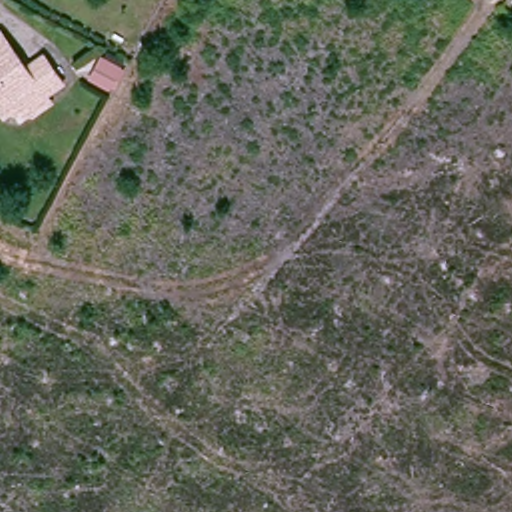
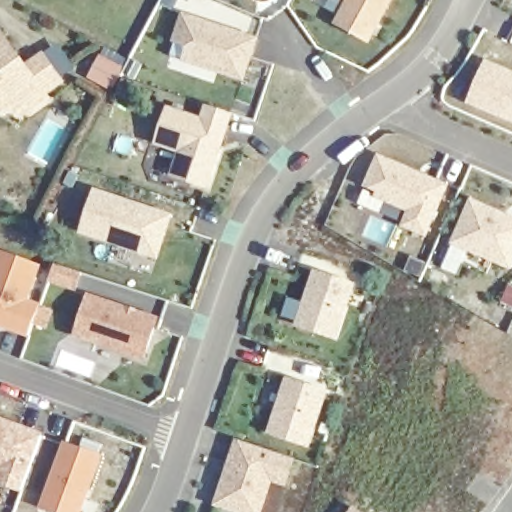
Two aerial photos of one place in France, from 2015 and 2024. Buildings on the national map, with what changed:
new [(258,0),(255,1),(254,0),(258,0)]
new [(347,0),(394,0),(369,44),(335,23),(347,0)]
new [(183,61),(186,46),(174,41),(182,14),(258,38),(244,81),(183,61)]
unchanged [(19,106),(10,111),(0,98),(0,35),(10,28),(32,61),(50,51),(66,75),(51,85),(55,94),(25,115),(19,106)]
unchanged [(124,80),(110,73),(115,60),(129,66),(124,80)]
new [(467,104),(486,60),(512,71),(512,122),(467,104)]
new [(179,153),(155,145),(168,106),(202,117),(205,105),(232,113),(207,190),(171,177),(179,153)]
new [(408,211),(375,197),(376,192),(363,187),(378,155),(449,185),(428,238),(402,227),(408,211)]
new [(80,234),(95,189),(174,216),(158,260),(80,234)]
new [(451,245),(471,199),(512,218),(512,264),(510,269),(451,245)]
new [(0,252),(40,266),(30,301),(40,304),(29,337),(0,327),(0,252)]
new [(295,326),(314,270),(354,284),(337,341),(295,326)]
new [(88,295),(158,318),(145,361),(75,337),(88,295)]
new [(269,433),(286,378),(327,393),(310,448),(269,433)]
new [(20,492),(0,486),(0,418),(42,434),(20,492)]
new [(215,505),(235,441),(293,459),(286,485),(272,482),(261,512),(236,512),(215,505)]
new [(40,506),(64,443),(102,456),(82,512),(54,512),(40,506)]
new [(352,507),(360,512),(349,512),(352,507)]

